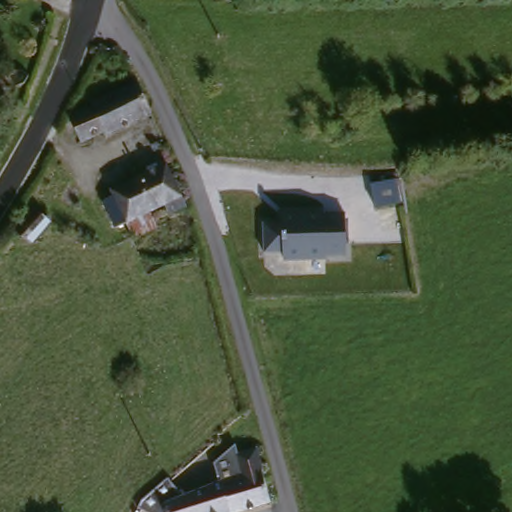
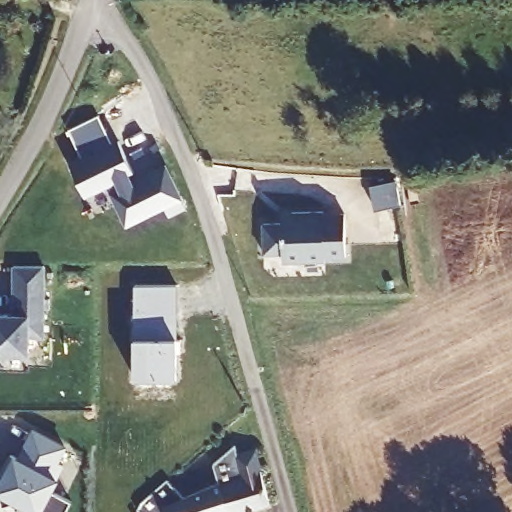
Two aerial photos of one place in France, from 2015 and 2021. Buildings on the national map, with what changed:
demolished [(149,112),(105,133),(99,130),(79,139),(68,111),(89,98),(134,78),(149,112)]
unchanged [(139,232),(130,218),(119,223),(106,196),(119,190),(118,184),(174,161),(191,204),(176,211),(169,201),(164,203),(172,217),(139,232)]
new [(388,173),(393,198),(368,203),(363,178),(388,173)]
demolished [(34,211),(46,224),(30,242),(16,228),(34,211)]
unchanged [(349,255),(285,256),(284,212),(349,211),(349,255)]
new [(14,301),(11,301),(11,265),(41,264),(41,334),(26,334),(26,350),(5,350),(5,354),(0,354),(0,313),(14,313),(14,301)]
new [(131,284),(173,284),(173,339),(173,376),(130,376),(131,284)]
new [(0,468),(0,465),(7,451),(15,455),(30,427),(60,444),(53,457),(59,461),(51,474),(53,475),(46,486),(67,497),(59,512),(31,512),(34,507),(15,497),(0,502),(0,473),(2,469),(0,468)]
unchanged [(172,477),(185,489),(221,483),(214,461),(239,440),(244,455),(264,448),(276,504),(247,512),(154,512),(144,500),(172,477)]

